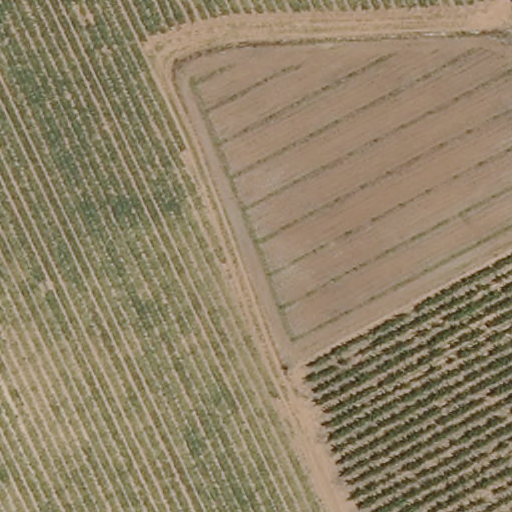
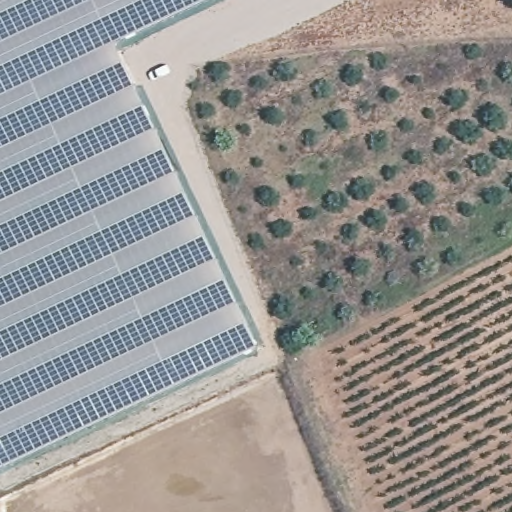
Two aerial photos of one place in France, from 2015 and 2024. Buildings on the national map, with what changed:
new [(259,349),(0,471),(0,0),(211,0),(117,44),(259,349)]

